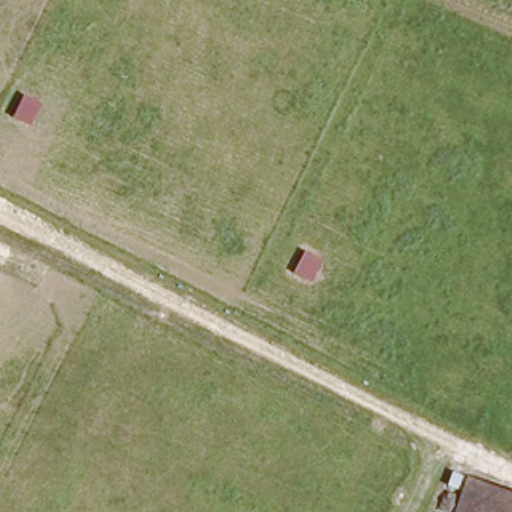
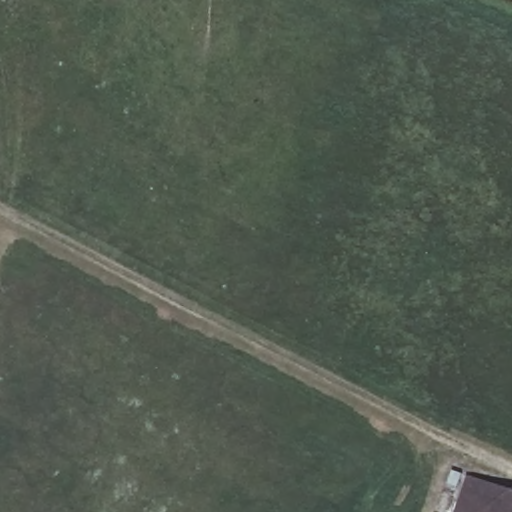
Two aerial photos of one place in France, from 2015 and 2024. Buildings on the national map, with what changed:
unchanged [(466,477),(512,491),(512,512),(453,512),(466,477)]

